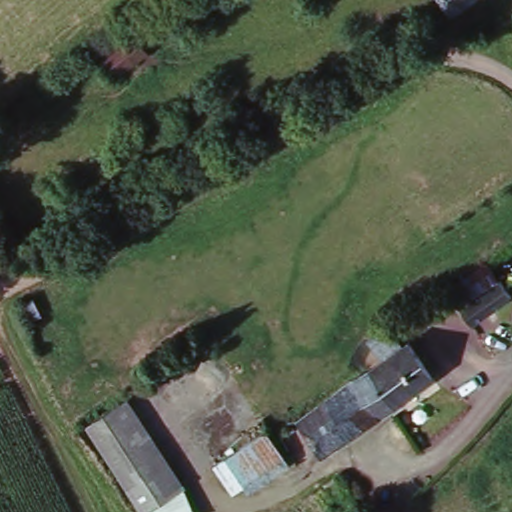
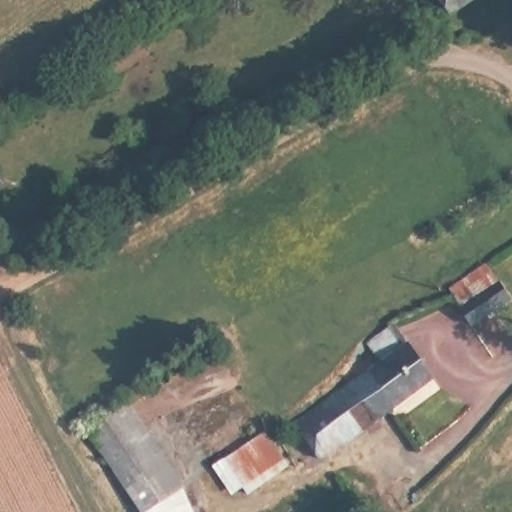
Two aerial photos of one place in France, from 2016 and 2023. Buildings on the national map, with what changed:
unchanged [(441,0),(468,0),(450,12),(441,0)]
unchanged [(136,35),(147,54),(109,79),(97,60),(136,35)]
unchanged [(511,299),(471,325),(460,308),(462,306),(452,291),(487,268),(497,283),(500,282),(511,299)]
unchanged [(293,421),(378,360),(367,344),(395,324),(430,377),(320,458),(293,421)]
unchanged [(97,424),(131,400),(187,483),(193,512),(156,512),(152,506),(97,424)]
unchanged [(262,428),(281,456),(232,490),(212,463),(262,428)]

